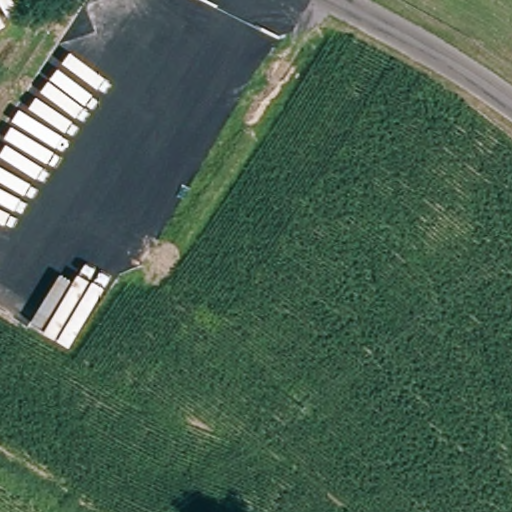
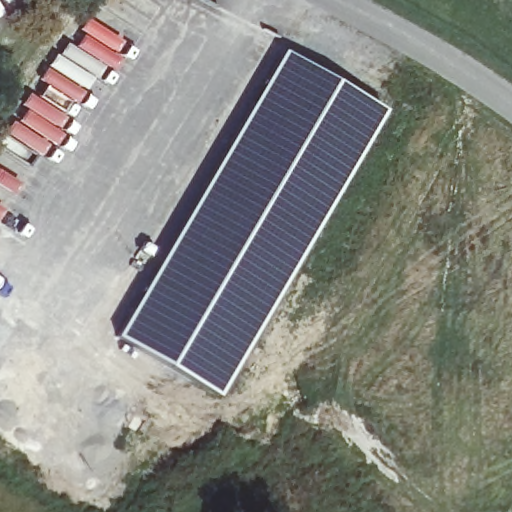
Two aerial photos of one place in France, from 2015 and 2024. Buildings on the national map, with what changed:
new [(281,48),(384,108),(216,397),(114,337),(281,48)]

